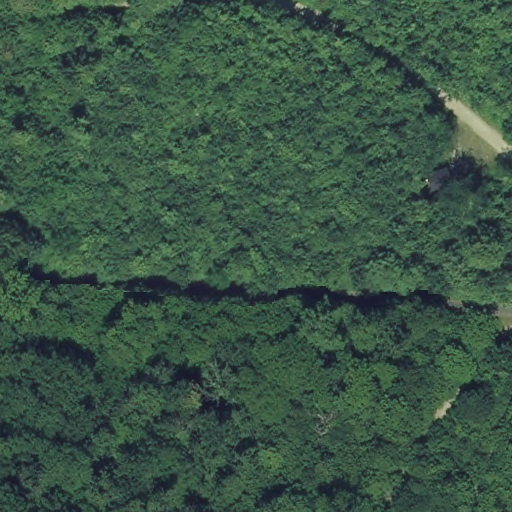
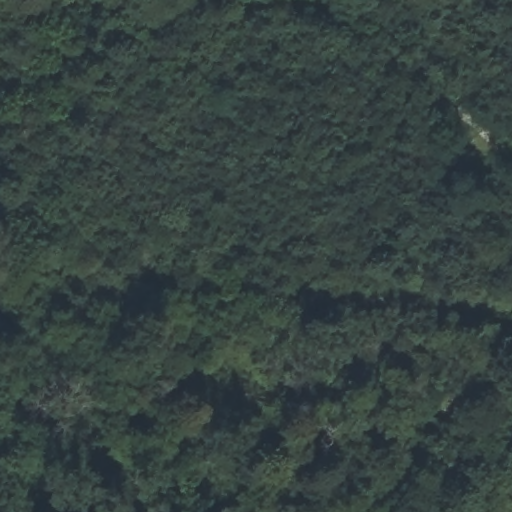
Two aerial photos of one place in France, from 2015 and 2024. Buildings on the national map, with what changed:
unchanged [(451,162),(459,186),(432,193),(425,173),(451,162)]

